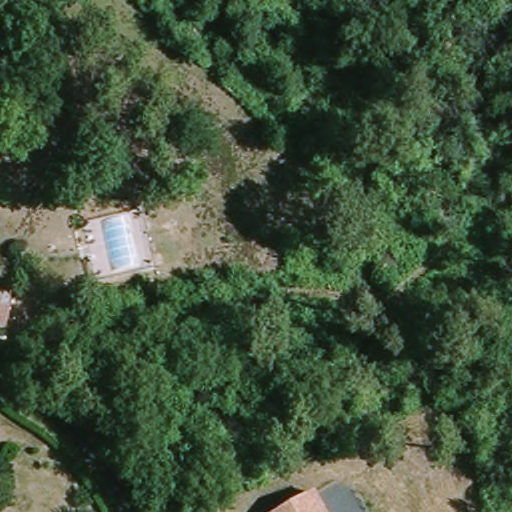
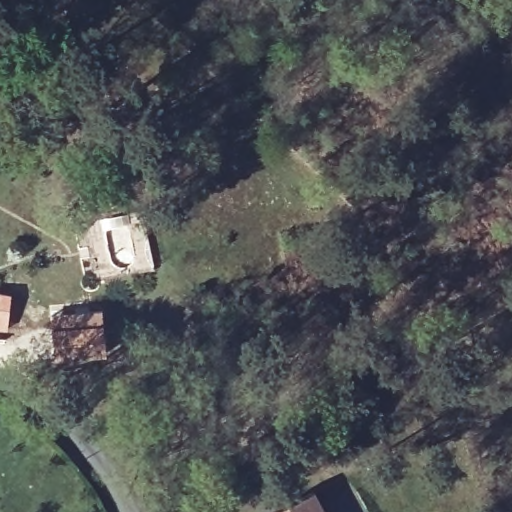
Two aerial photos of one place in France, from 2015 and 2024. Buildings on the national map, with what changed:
unchanged [(15,296),(10,320),(9,329),(0,327),(0,292),(15,296)]
new [(108,353),(59,360),(54,329),(104,322),(108,353)]
unchanged [(322,494),(331,512),(288,512),(322,494)]

